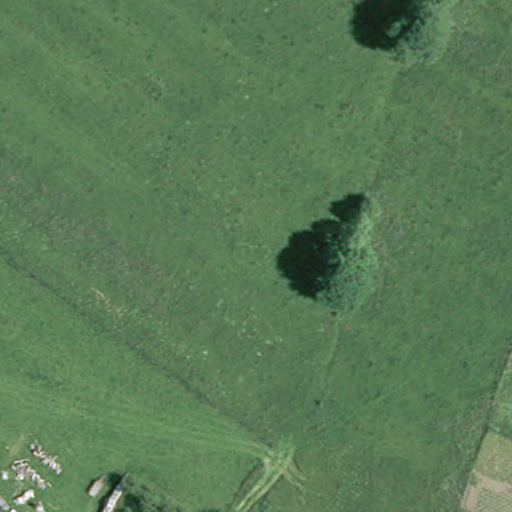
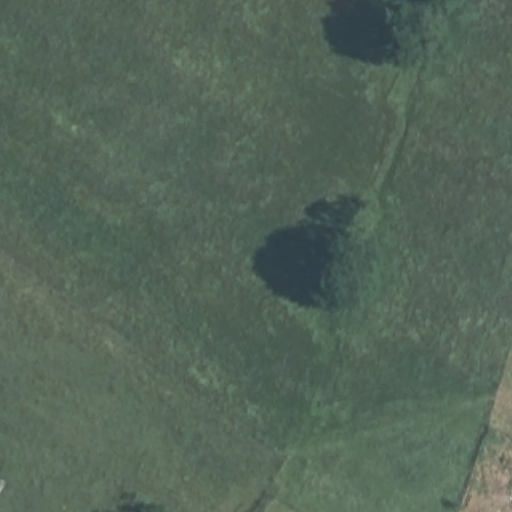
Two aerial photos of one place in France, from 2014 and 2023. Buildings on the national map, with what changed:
[]

